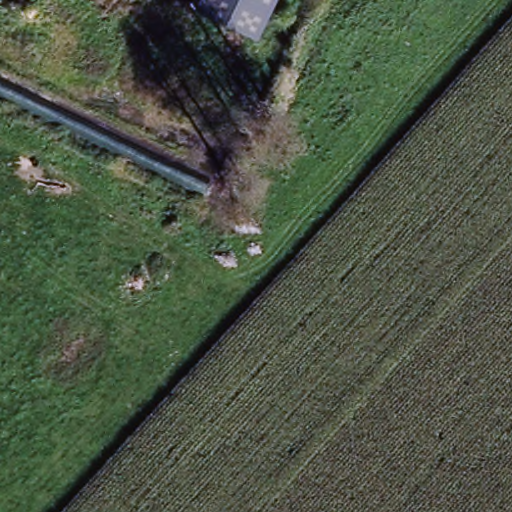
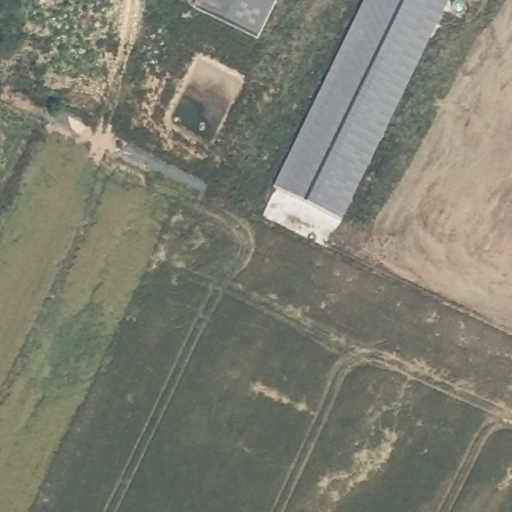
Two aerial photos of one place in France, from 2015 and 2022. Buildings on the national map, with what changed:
unchanged [(258,44),(194,12),(199,0),(278,0),(258,44)]
new [(369,0),(451,0),(341,221),(277,187),(369,0)]

